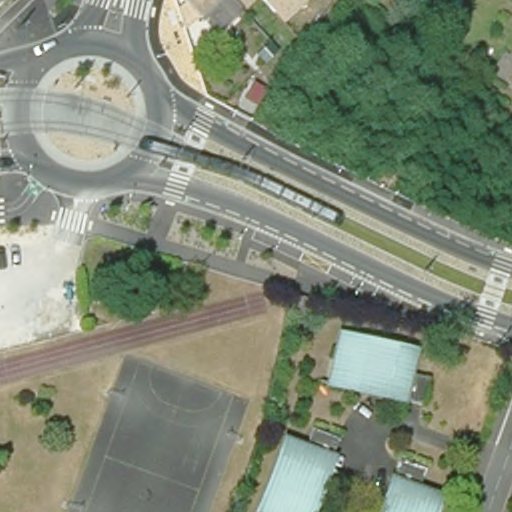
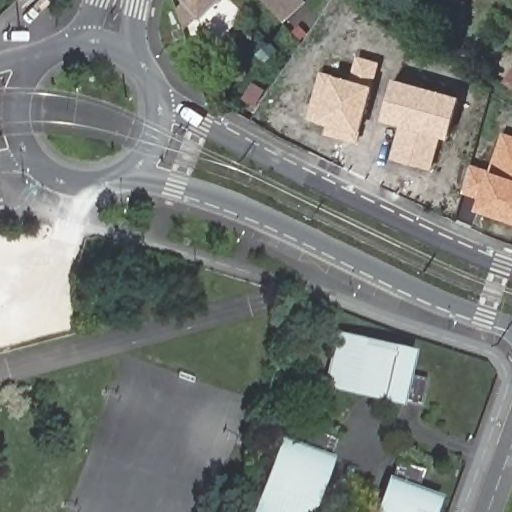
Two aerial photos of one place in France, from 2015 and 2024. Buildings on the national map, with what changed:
unchanged [(195,14),(183,1),(182,0),(219,0),(199,19),(197,16),(195,14)]
unchanged [(282,23),(264,0),(304,0),(306,3),(282,23)]
unchanged [(468,0),(479,0),(476,5),(468,0)]
new [(319,71),(331,74),(349,79),(356,56),(380,63),(373,86),(360,134),(358,143),(325,134),(324,124),(317,123),(306,119),(319,71)]
unchanged [(512,81),(507,78),(512,71),(512,81)]
new [(440,137),(430,169),(391,158),(400,126),(382,121),(394,78),(461,96),(449,139),(440,137)]
new [(512,135),(512,223),(477,210),(480,199),(462,194),(472,164),(489,169),(502,131),(512,135)]
unchanged [(262,289),(281,294),(277,314),(258,310),(262,289)]
unchanged [(322,382),(328,356),(334,333),(403,349),(400,371),(419,376),(413,404),(371,394),(334,384),(322,382)]
unchanged [(252,510),(281,441),(302,449),(310,430),(335,439),(319,480),(306,512),(257,512),(252,510)]
unchanged [(374,499),(390,457),(417,467),(410,487),(429,494),(423,512),(369,512),(374,499)]

